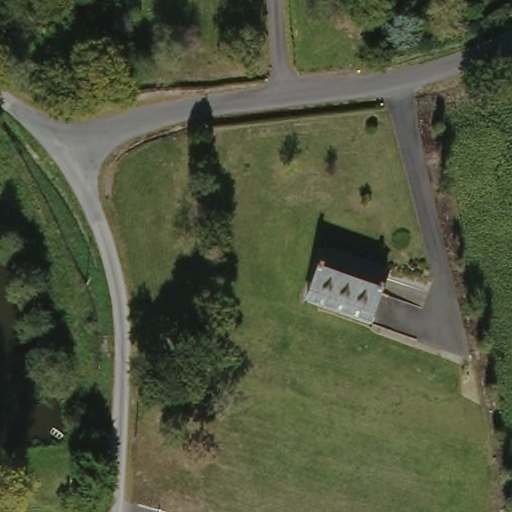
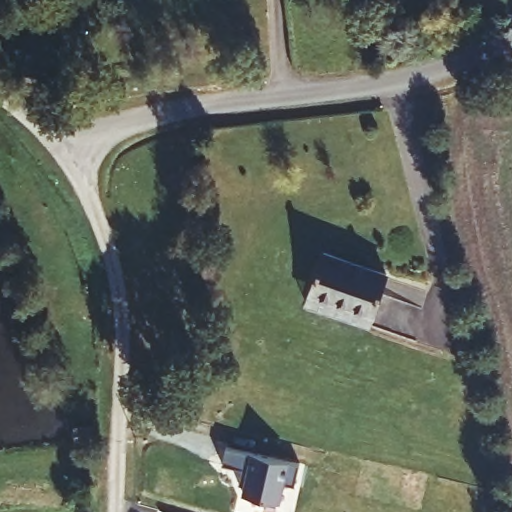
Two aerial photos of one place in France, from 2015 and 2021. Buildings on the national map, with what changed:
unchanged [(386,280),(366,329),(300,308),(320,258),(386,280)]
unchanged [(78,432),(77,443),(61,443),(62,431),(78,432)]
new [(241,495),(243,486),(237,484),(240,469),(221,465),(225,447),(250,453),(287,461),(299,464),(294,487),(284,485),(280,503),(241,495)]

